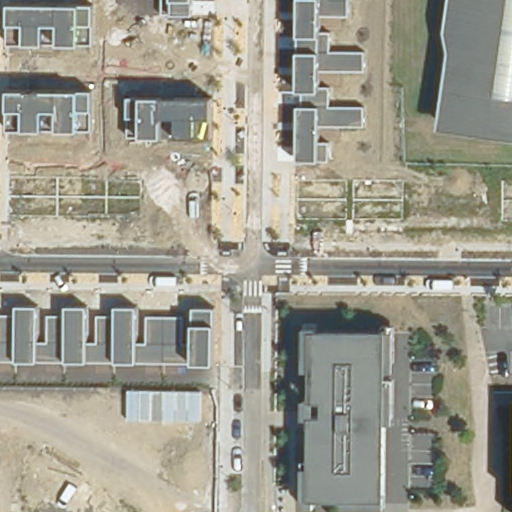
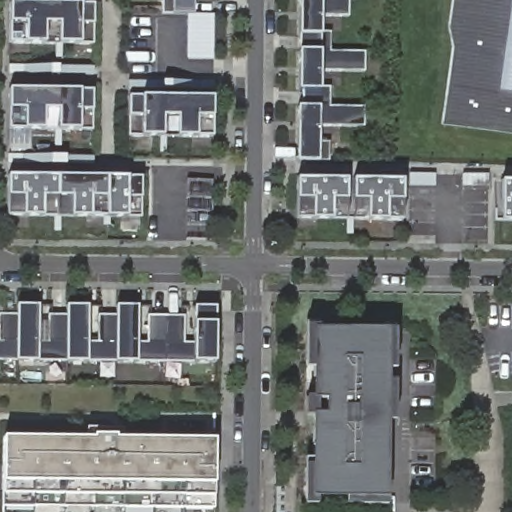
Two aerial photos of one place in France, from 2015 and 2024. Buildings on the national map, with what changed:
unchanged [(194,15),(187,15),(163,16),(163,0),(194,0),(194,15)]
unchanged [(349,16),(321,16),(320,34),(330,34),(330,52),(365,52),(365,72),(320,71),(319,89),(330,88),(331,106),(365,107),(365,127),(337,126),(319,126),(318,142),(328,142),(329,162),(318,161),(298,161),(298,107),(298,91),(299,0),(349,0),(349,16)]
unchanged [(448,49),(443,29),(448,0),(512,0),(512,133),(437,122),(448,49)]
unchanged [(80,4),(95,4),(94,44),(80,45),(10,44),(10,2),(80,4)]
new [(187,15),(194,15),(213,15),(212,59),(186,59),(187,15)]
unchanged [(80,91),(93,91),(92,130),(80,131),(9,130),(9,90),(80,91)]
unchanged [(141,96),(214,97),(214,139),(141,137),(129,137),(129,96),(141,96)]
new [(6,215),(6,175),(141,177),(140,217),(6,215)]
new [(295,219),(296,179),(403,179),(402,220),(295,219)]
new [(211,240),(186,240),(186,180),(211,180),(211,240)]
new [(500,180),(512,180),(512,221),(500,221),(500,180)]
unchanged [(217,362),(193,362),(137,362),(0,361),(0,316),(17,317),(17,306),(38,307),(38,341),(49,341),(48,315),(67,316),(67,306),(88,306),(89,342),(99,342),(99,315),(116,316),(116,306),(137,306),(137,342),(147,342),(148,316),(185,316),(185,344),(194,345),(195,323),(194,307),(216,307),(217,362)]
unchanged [(395,371),(388,371),(388,383),(396,383),(396,427),(388,427),(387,507),(348,507),(347,498),(318,497),(317,503),(305,504),(306,466),(312,466),(312,417),(306,417),(306,397),(313,397),(313,368),(306,368),(306,325),(319,325),(319,330),(396,331),(395,371)]
new [(214,512),(2,512),(2,482),(4,437),(214,439),(214,482),(214,512)]

